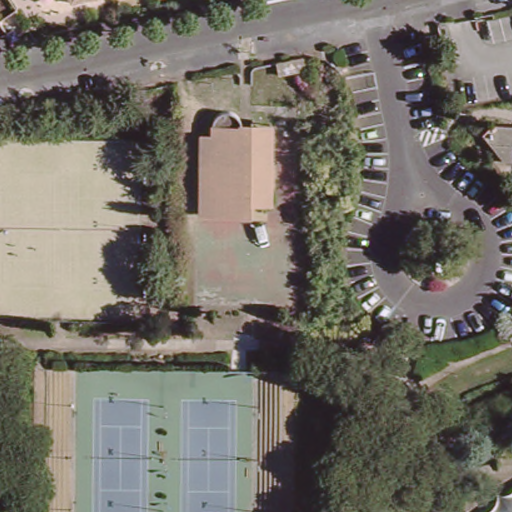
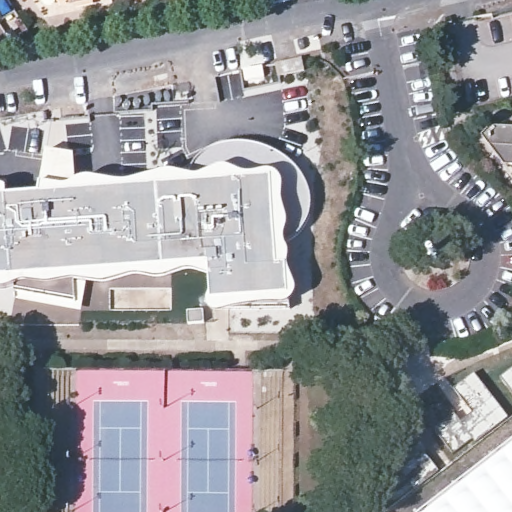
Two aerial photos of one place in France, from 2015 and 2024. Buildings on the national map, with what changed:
unchanged [(17,10),(30,30),(13,41),(0,22),(0,21),(17,10)]
unchanged [(315,66),(289,73),(287,62),(313,56),(315,66)]
demolished [(201,133),(210,132),(212,123),(279,124),(279,178),(273,178),(273,209),(257,208),(257,220),(201,215),(201,133)]
unchanged [(483,134),(493,128),(512,127),(512,162),(506,162),(483,134)]
new [(5,187),(8,189),(9,196),(40,194),(42,184),(48,152),(76,155),(79,182),(84,178),(91,178),(106,181),(122,183),(131,182),(144,179),(160,175),(170,173),(177,173),(190,175),(197,161),(205,153),(217,146),(231,143),(249,143),(265,147),(276,152),(291,161),(302,173),(310,186),(313,199),(312,217),(306,228),(299,238),(289,247),(291,252),(291,257),(290,263),(290,268),(294,278),(298,287),(298,292),(298,296),(294,302),(292,304),(292,312),(226,313),(217,315),(210,310),(208,303),(210,298),(211,294),(210,278),(198,273),(189,272),(174,276),(164,279),(152,279),(142,277),(133,278),(121,280),(110,284),(101,285),(91,283),(83,313),(18,301),(19,285),(14,287),(5,290),(0,289),(0,186),(5,187)]
new [(423,512),(512,442),(512,512),(423,512)]

